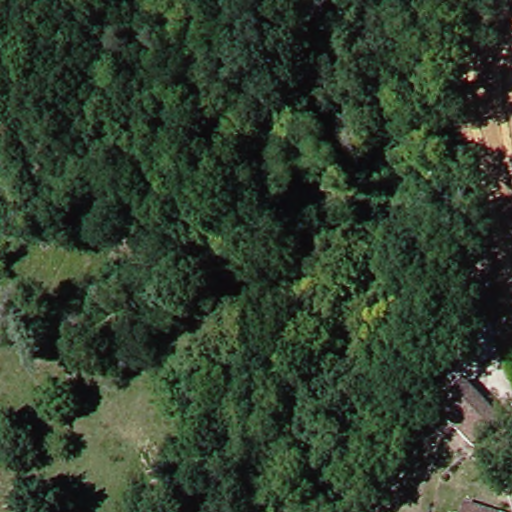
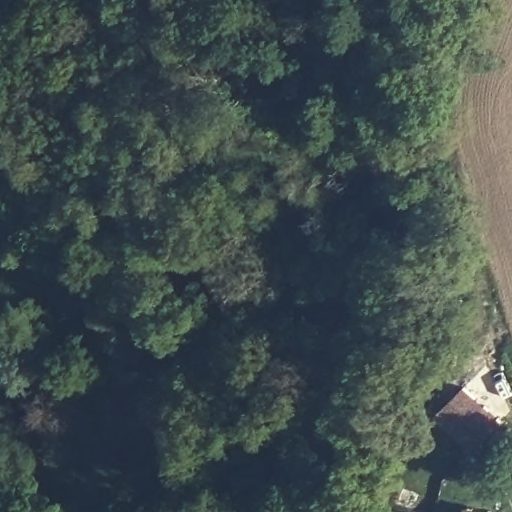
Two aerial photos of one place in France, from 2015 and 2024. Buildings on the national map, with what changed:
unchanged [(458,385),(492,432),(478,443),(469,449),(434,403),(458,385)]
unchanged [(462,508),(485,512),(461,512),(462,508)]

